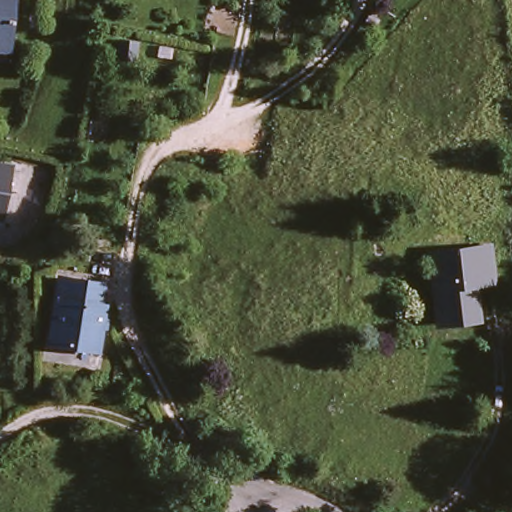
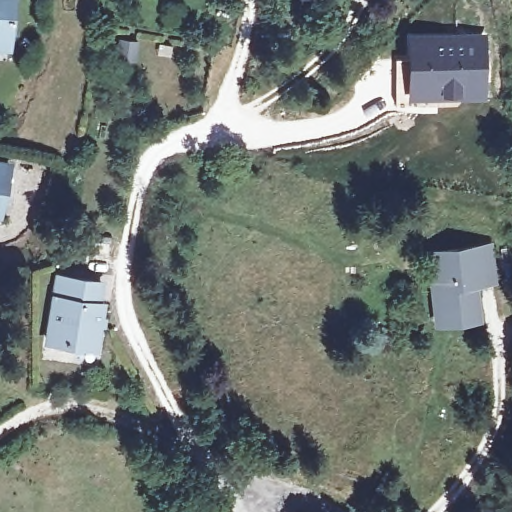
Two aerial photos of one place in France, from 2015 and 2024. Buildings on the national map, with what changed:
unchanged [(8,44),(0,42),(0,0),(19,0),(8,44)]
new [(394,58),(406,57),(406,32),(488,32),(489,102),(435,101),(406,104),(395,104),(394,58)]
unchanged [(437,321),(435,308),(425,252),(491,239),(497,277),(474,281),(477,301),(479,313),(437,321)]
unchanged [(107,301),(96,348),(45,338),(58,277),(97,286),(94,298),(107,301)]

